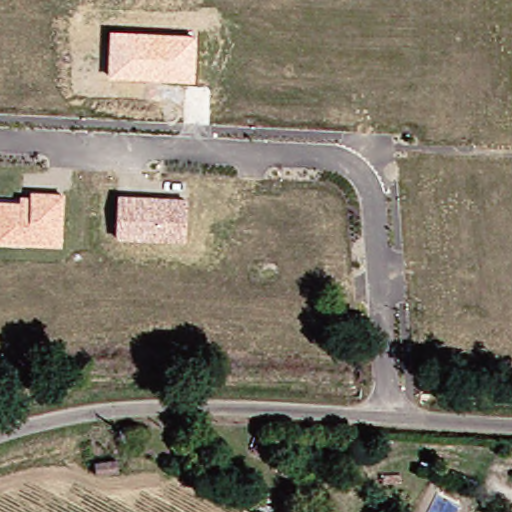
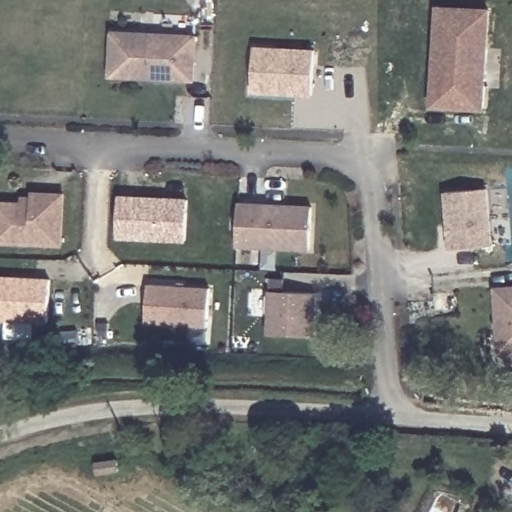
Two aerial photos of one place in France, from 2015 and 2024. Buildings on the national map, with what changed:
new [(436,9),(486,12),(481,110),(431,109),(432,90),(434,49),(436,9)]
unchanged [(106,76),(108,30),(196,34),(193,83),(106,76)]
new [(314,95),(253,92),(255,45),(316,48),(314,95)]
unchanged [(64,191),(61,246),(0,243),(0,200),(20,200),(20,194),(31,195),(31,190),(64,191)]
new [(492,249),(446,251),(442,194),(488,191),(492,249)]
unchanged [(186,197),(185,244),(116,239),(117,194),(186,197)]
unchanged [(238,202),(312,207),(309,252),(235,249),(238,202)]
new [(47,281),(45,323),(0,321),(0,279),(47,281)]
new [(208,288),(206,327),(145,323),(148,285),(208,288)]
unchanged [(512,354),(498,355),(491,287),(512,286),(512,354)]
new [(317,292),(315,337),(266,335),(268,290),(317,292)]
unchanged [(121,466),(99,471),(96,460),(118,454),(121,466)]

